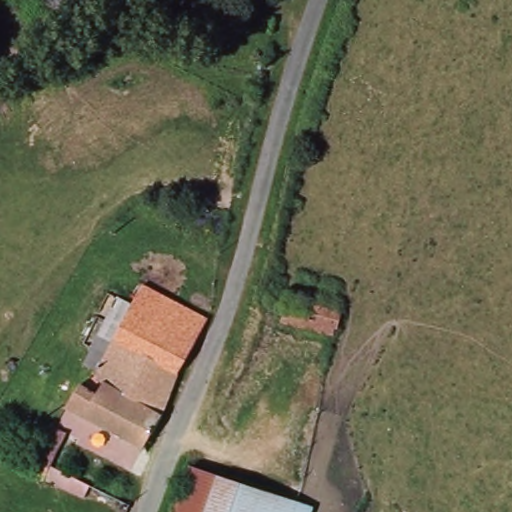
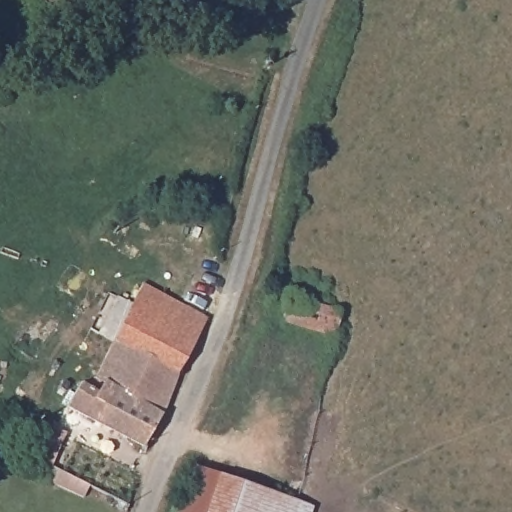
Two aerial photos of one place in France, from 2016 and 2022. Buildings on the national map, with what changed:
unchanged [(209,0),(236,14),(227,32),(177,5),(179,0),(209,0)]
unchanged [(80,379),(89,384),(96,370),(83,363),(116,295),(131,303),(141,282),(207,314),(193,342),(174,380),(169,391),(141,446),(65,408),(80,379)]
unchanged [(273,286),(343,309),(334,337),(280,319),(285,305),(269,299),(273,286)]
unchanged [(31,460),(33,456),(33,455),(49,423),(63,429),(47,462),(61,469),(86,482),(79,496),(26,469),(31,460)]
unchanged [(190,462),(314,502),(311,512),(174,512),(190,462)]

